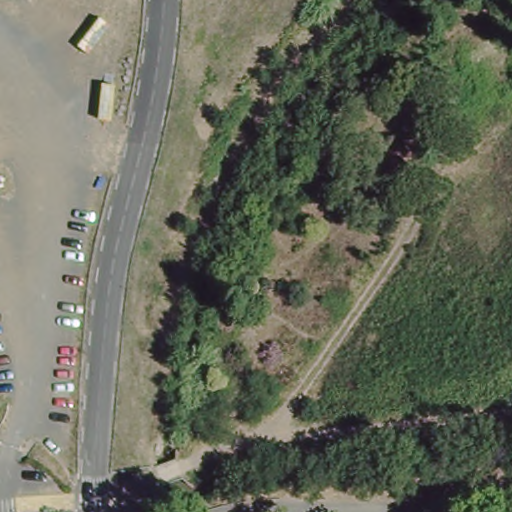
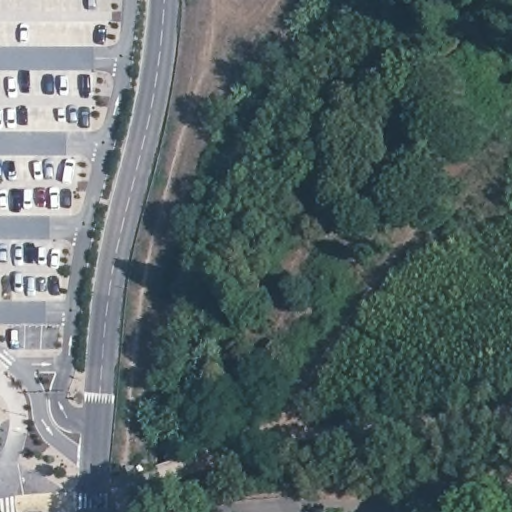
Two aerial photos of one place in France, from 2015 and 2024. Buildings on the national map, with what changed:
unchanged [(358,248),(335,233),(347,215),(369,231),(358,248)]

